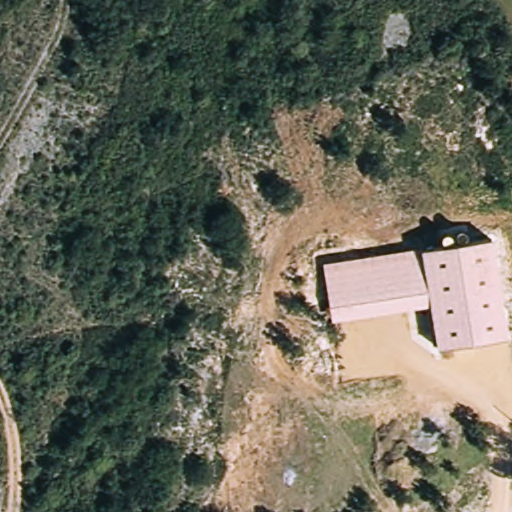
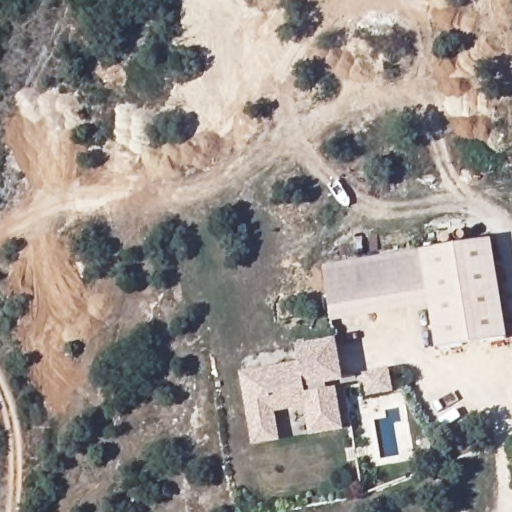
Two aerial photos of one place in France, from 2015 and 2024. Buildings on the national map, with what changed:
unchanged [(333,323),(325,266),(423,249),(443,246),(442,235),(466,231),(468,243),(491,241),(508,338),(439,349),(432,308),(333,323)]
new [(328,392),(337,390),(344,431),(311,438),(305,408),(277,414),(282,441),(254,448),(240,373),(301,363),(298,346),(337,341),(345,382),(327,385),(328,392)]

